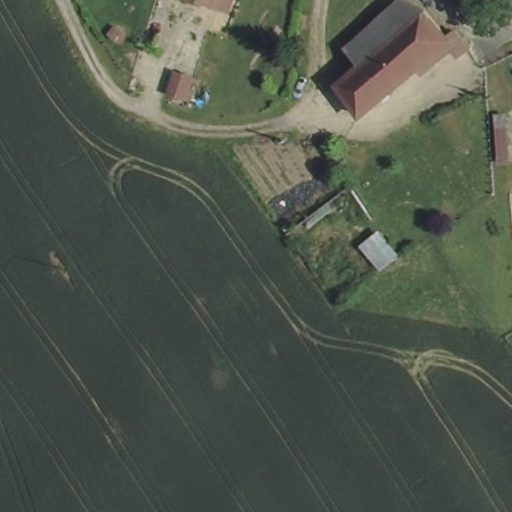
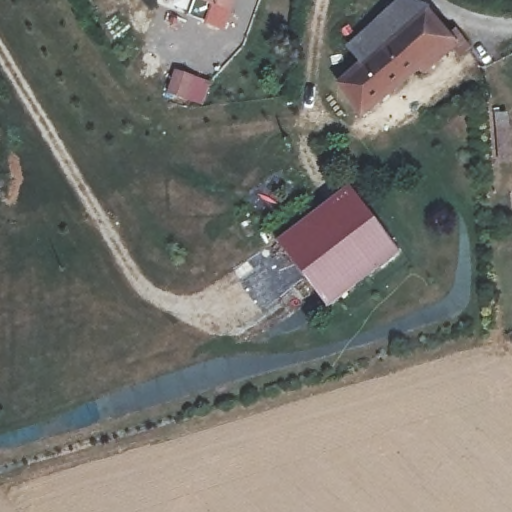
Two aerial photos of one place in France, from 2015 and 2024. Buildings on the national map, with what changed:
unchanged [(234,10),(218,4),(208,0),(237,0),(234,10)]
unchanged [(353,118),(339,98),(369,75),(354,54),(362,47),(409,12),(425,23),(451,60),(360,129),(353,118)]
unchanged [(190,90),(207,97),(197,120),(180,112),(190,90)]
new [(276,241),(348,185),(399,252),(327,306),(276,241)]

